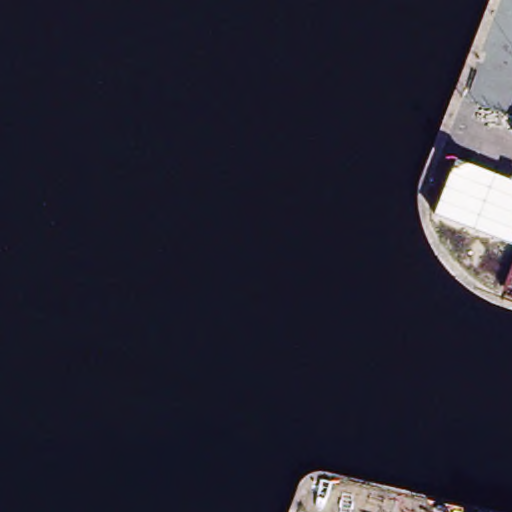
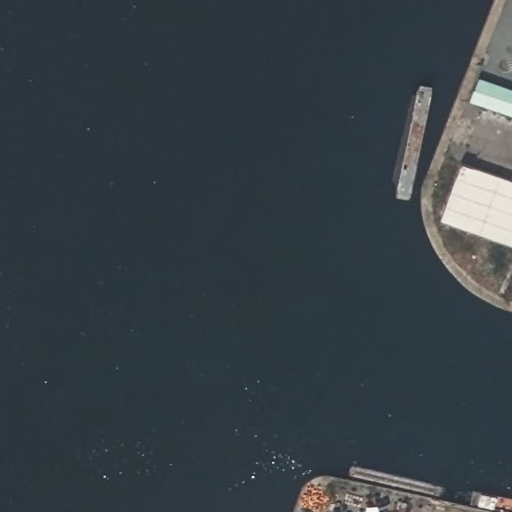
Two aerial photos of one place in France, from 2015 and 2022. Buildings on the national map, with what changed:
unchanged [(458,160),(512,180),(512,246),(435,217),(458,160)]

